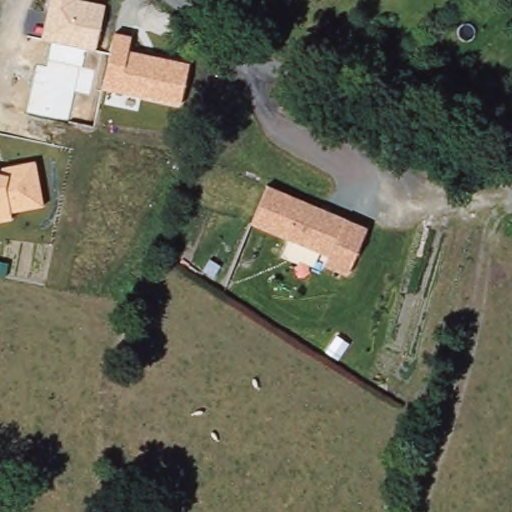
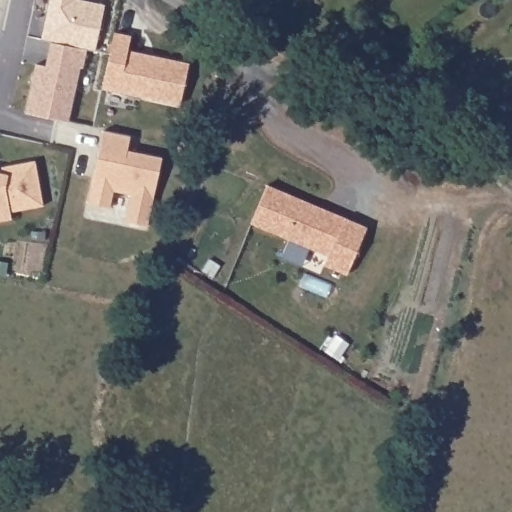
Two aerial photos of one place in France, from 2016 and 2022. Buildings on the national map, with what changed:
unchanged [(40,40),(50,0),(80,0),(105,5),(95,50),(40,40)]
unchanged [(115,33),(131,35),(129,50),(189,64),(180,105),(103,89),(115,33)]
new [(46,65),(50,41),(87,49),(84,65),(79,65),(68,121),(26,110),(36,64),(46,65)]
new [(127,221),(131,193),(114,190),(111,207),(88,200),(105,129),(131,135),(129,150),(162,157),(149,225),(127,221)]
unchanged [(512,140),(512,153),(505,145),(512,140)]
unchanged [(35,161),(44,206),(10,213),(11,220),(0,221),(0,168),(35,161)]
unchanged [(368,224),(348,275),(321,265),(327,250),(251,222),(269,182),(368,224)]

